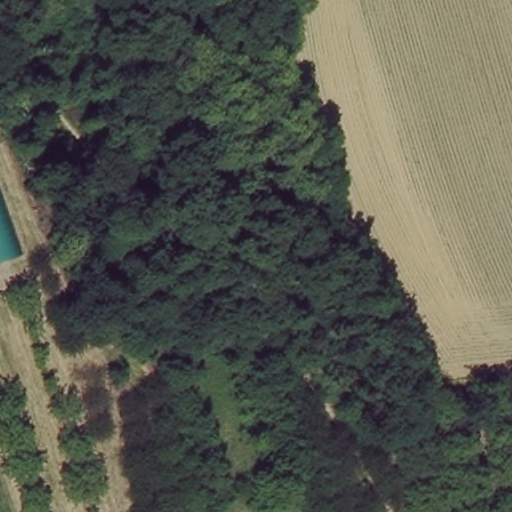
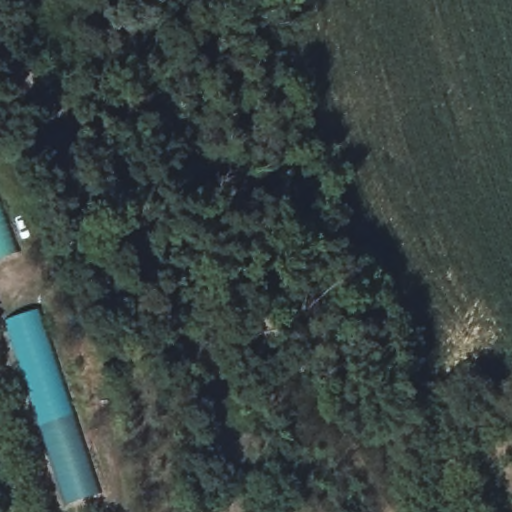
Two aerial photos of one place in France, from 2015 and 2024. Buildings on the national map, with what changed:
unchanged [(14,255),(0,259),(0,212),(14,255)]
new [(70,505),(8,322),(38,311),(100,495),(70,505)]

